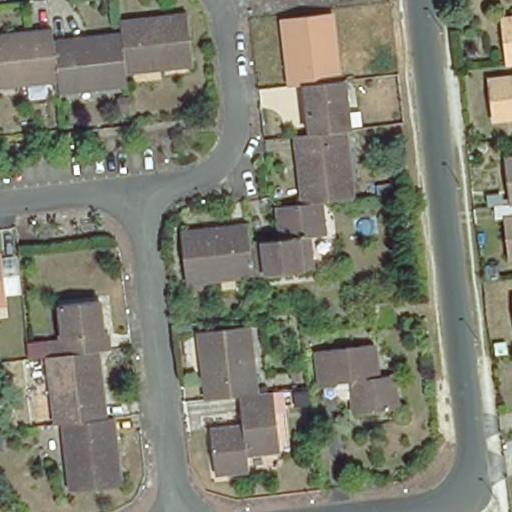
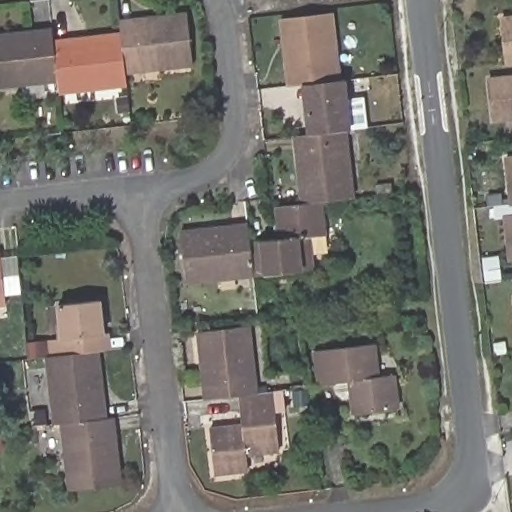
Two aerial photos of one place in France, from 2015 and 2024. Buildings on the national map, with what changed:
unchanged [(283,53),(282,42),(279,18),(329,12),(337,83),(302,87),(287,89),(283,53)]
unchanged [(169,18),(190,16),(195,68),(127,74),(123,37),(121,23),(158,20),(169,18)]
unchanged [(496,23),(512,22),(512,68),(501,69),(496,23)]
unchanged [(60,82),(0,88),(0,37),(9,36),(18,35),(54,31),(56,44),(60,82)]
unchanged [(56,44),(91,40),(103,39),(123,37),(127,74),(129,88),(61,95),(60,82),(56,44)]
unchanged [(484,84),(512,81),(512,123),(489,125),(484,84)]
unchanged [(307,137),(302,87),(337,83),(342,83),(348,132),(342,133),(307,137)]
unchanged [(292,138),(307,137),(342,133),(350,202),(337,204),(319,206),(318,206),(299,209),(297,188),(296,177),(292,138)]
unchanged [(499,222),(491,222),(490,210),(505,208),(500,162),(512,161),(512,263),(504,264),(499,222)]
unchanged [(378,183),(394,181),(395,191),(385,192),(379,193),(378,183)]
unchanged [(323,240),(308,242),(311,274),(254,280),(254,278),(250,245),(280,242),(277,212),(299,209),(318,206),(319,206),(323,240)]
unchanged [(178,234),(201,232),(211,231),(247,227),(250,245),(254,278),(185,285),(178,234)]
unchanged [(5,301),(0,302),(0,251),(5,301)]
unchanged [(500,272),(487,275),(485,259),(497,257),(500,272)]
unchanged [(504,299),(512,298),(512,341),(509,341),(504,299)]
unchanged [(50,340),(64,339),(61,305),(100,301),(105,352),(99,352),(101,372),(102,383),(105,419),(91,420),(63,424),(60,424),(55,425),(49,358),(52,357),(50,340)]
unchanged [(376,304),(395,302),(397,322),(377,324),(376,304)]
unchanged [(235,395),(201,399),(197,363),(196,354),(193,331),(245,326),(251,393),(250,393),(235,395)]
unchanged [(341,392),(340,382),(322,382),(319,349),(377,343),(380,376),(397,376),(399,407),(356,412),(354,397),(348,397),(341,392)]
unchanged [(242,453),(243,470),(211,474),(206,430),(239,426),(235,395),(250,393),(251,393),(268,391),(278,390),(280,411),(270,412),(274,449),(242,453)]
unchanged [(512,414),(512,426),(508,415),(512,414)]
unchanged [(119,485),(69,489),(63,424),(91,420),(105,419),(107,419),(112,418),(116,455),(117,464),(119,485)]

